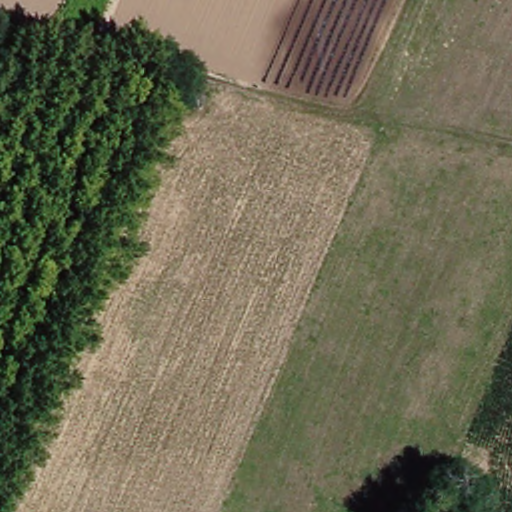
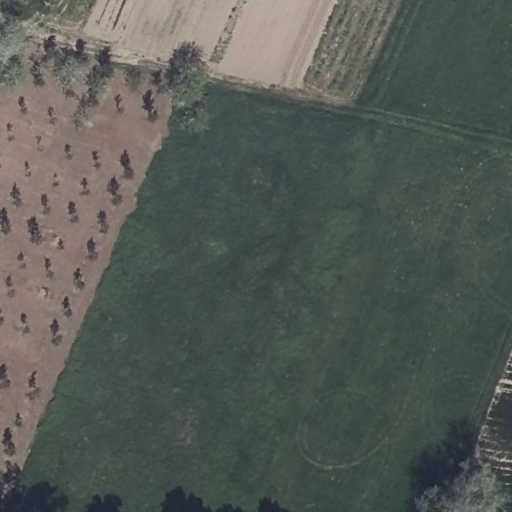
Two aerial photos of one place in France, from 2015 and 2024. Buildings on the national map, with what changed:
unchanged [(167,109),(172,97),(193,106),(189,117),(167,109)]

